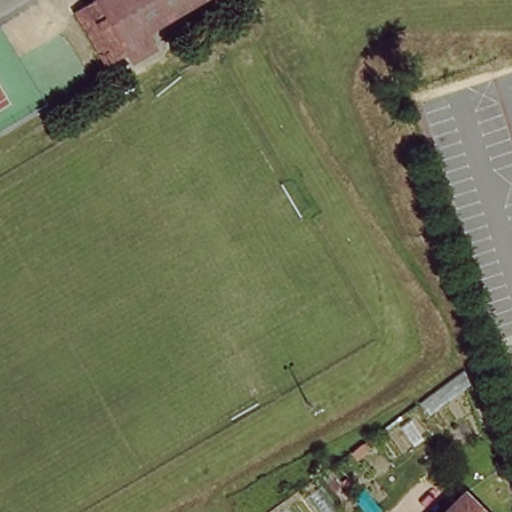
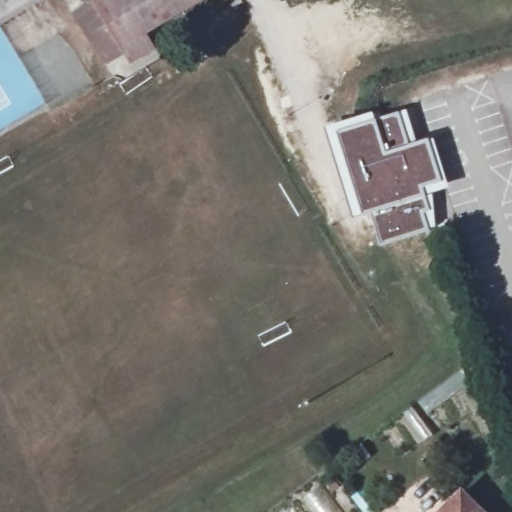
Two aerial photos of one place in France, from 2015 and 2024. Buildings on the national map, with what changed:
unchanged [(88,24),(85,18),(78,7),(90,0),(191,0),(145,26),(154,45),(132,57),(127,49),(109,59),(88,24)]
new [(375,111),(377,119),(408,109),(417,142),(435,138),(450,186),(435,193),(437,227),(430,229),(383,245),(374,211),(356,216),(329,126),(375,111)]
unchanged [(441,512),(464,491),(483,512),(441,512)]

